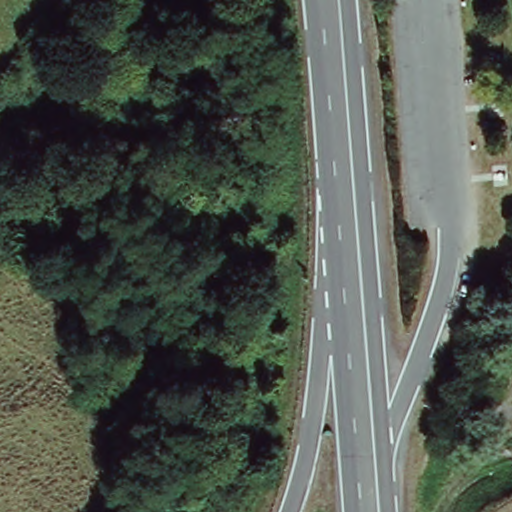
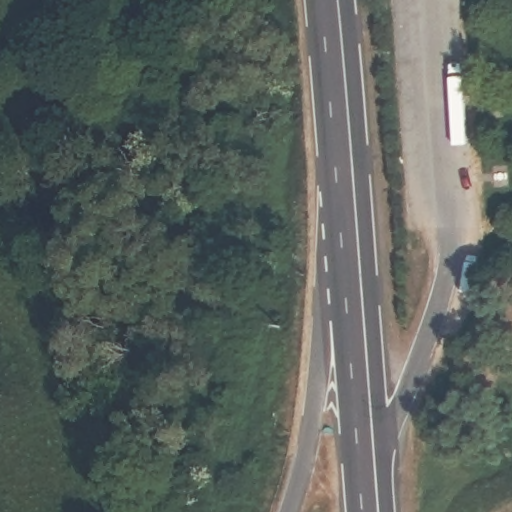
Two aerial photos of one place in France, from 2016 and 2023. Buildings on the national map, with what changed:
[]

